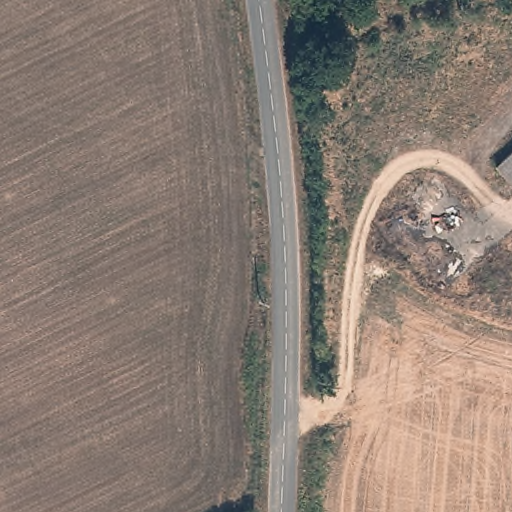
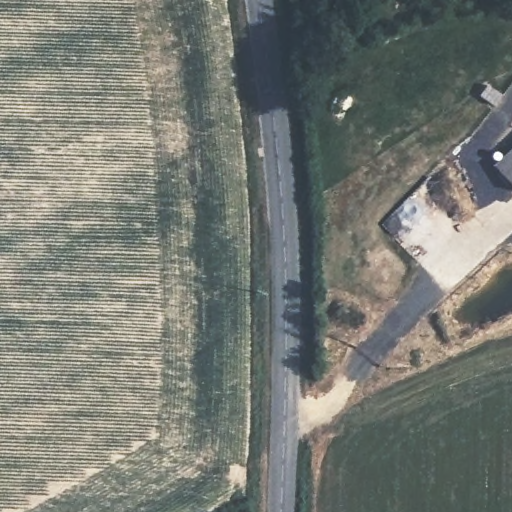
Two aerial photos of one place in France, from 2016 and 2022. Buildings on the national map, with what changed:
unchanged [(512,152),(512,185),(496,167),(512,152)]

